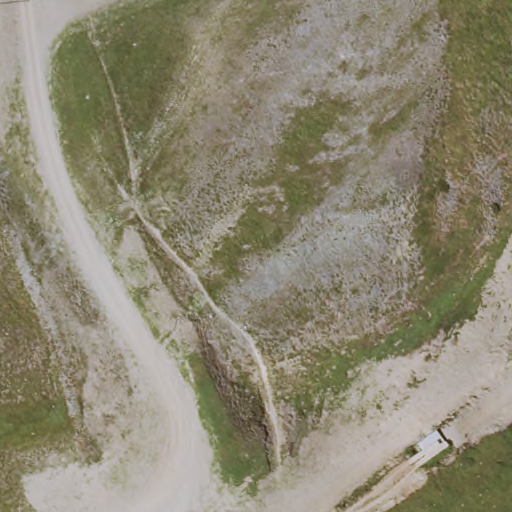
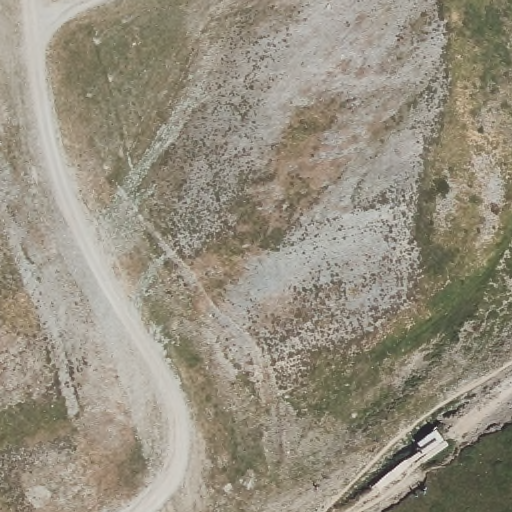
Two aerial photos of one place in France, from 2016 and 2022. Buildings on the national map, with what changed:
unchanged [(449,445),(427,457),(414,440),(422,435),(435,427),(449,445)]

